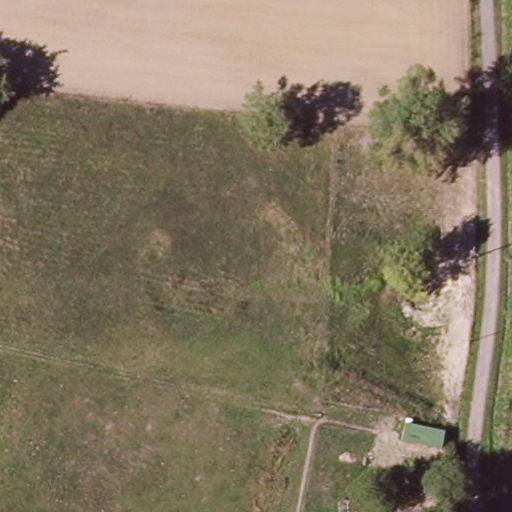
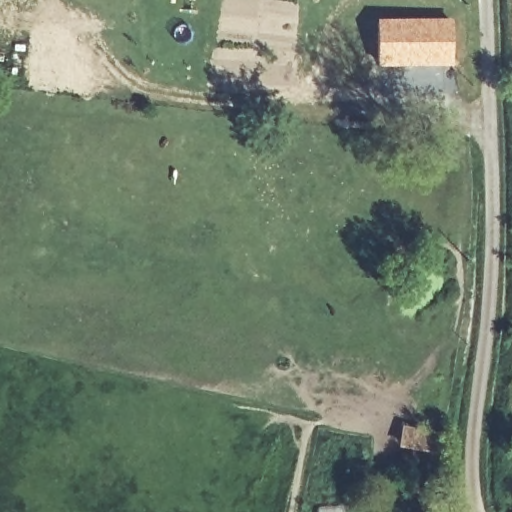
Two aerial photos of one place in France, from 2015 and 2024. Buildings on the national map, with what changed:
new [(453,18),(453,66),(377,67),(376,18),(453,18)]
new [(442,430),(441,456),(396,448),(399,422),(442,430)]

